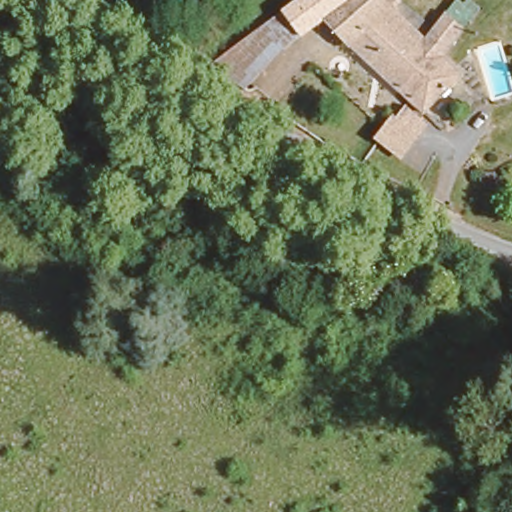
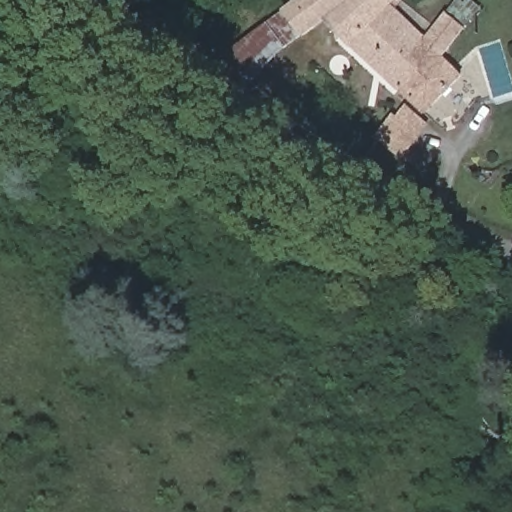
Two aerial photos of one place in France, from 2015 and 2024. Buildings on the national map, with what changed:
unchanged [(290,0),(339,0),(323,12),(264,48),(246,60),(235,72),(217,59),(290,0)]
unchanged [(345,34),(323,12),(339,0),(382,0),(345,34)]
unchanged [(392,80),(390,78),(345,34),(382,0),(404,0),(408,4),(401,12),(421,33),(432,44),(393,82),(392,80)]
unchanged [(431,20),(442,8),(445,4),(463,17),(440,45),(421,33),(431,20)]
unchanged [(432,44),(454,67),(417,105),(393,82),(432,44)]
unchanged [(424,119),(400,152),(378,137),(402,100),(424,119)]

